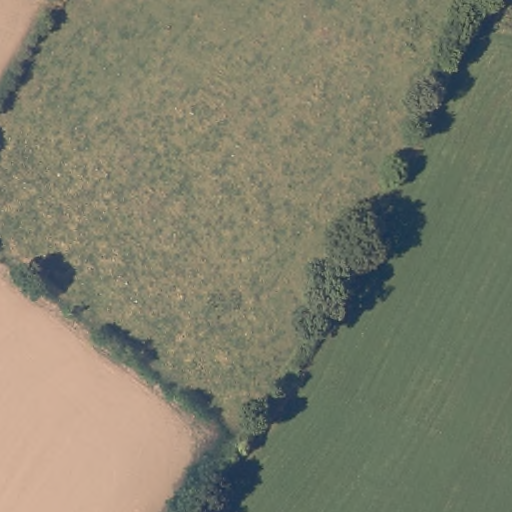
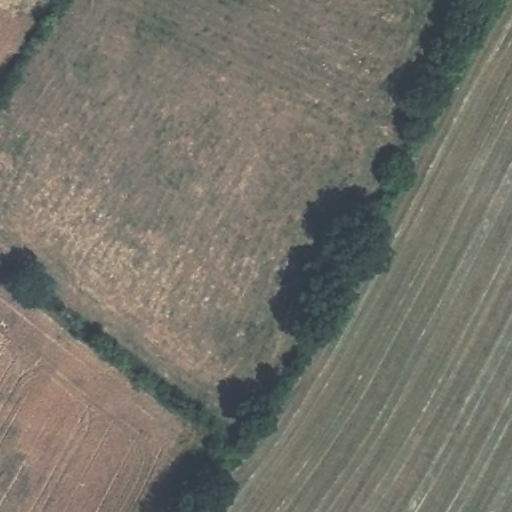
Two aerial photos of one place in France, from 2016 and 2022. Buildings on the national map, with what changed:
[]

